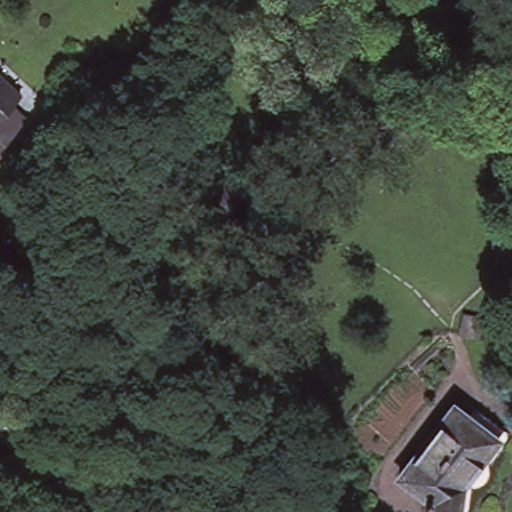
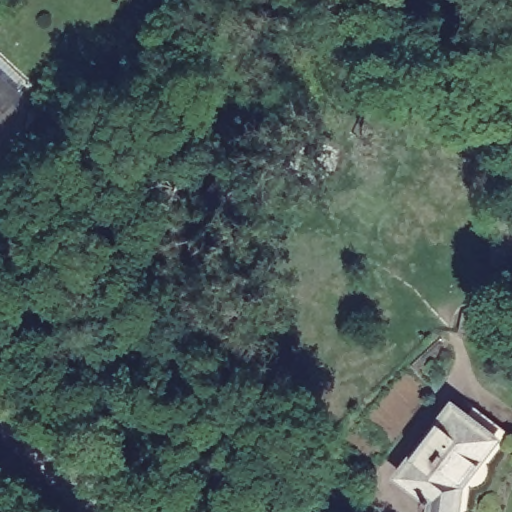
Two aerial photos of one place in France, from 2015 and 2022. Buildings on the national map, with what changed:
unchanged [(0,146),(0,83),(16,98),(5,109),(20,123),(0,146)]
unchanged [(227,215),(207,199),(226,176),(246,192),(227,215)]
unchanged [(512,267),(492,268),(490,210),(512,208),(512,267)]
unchanged [(460,416),(465,409),(502,438),(477,471),(477,476),(477,481),(477,486),(475,489),(471,491),(467,493),(463,494),(460,512),(422,512),(424,504),(390,477),(445,406),(460,416)]

